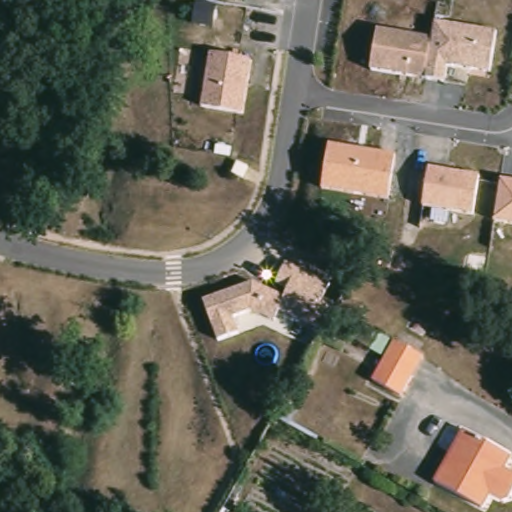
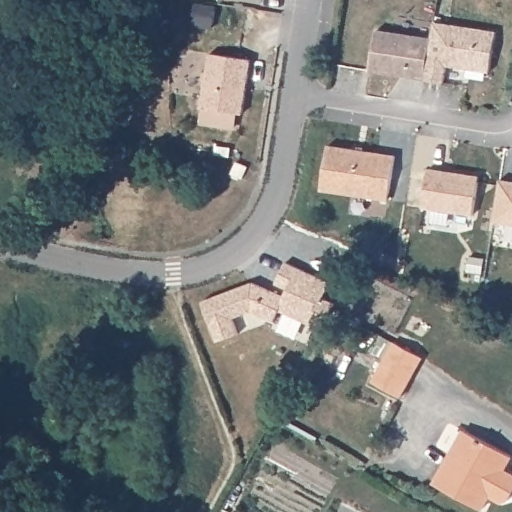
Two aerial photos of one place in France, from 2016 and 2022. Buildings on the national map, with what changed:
unchanged [(432,22),(495,31),(489,72),(446,66),(442,82),(370,71),(376,29),(430,37),(432,22)]
unchanged [(242,114),(202,108),(210,53),(251,60),(242,114)]
unchanged [(388,201),(321,191),(328,145),(396,155),(388,201)]
unchanged [(473,215),(421,209),(427,167),(478,174),(473,215)]
unchanged [(512,225),(493,222),(500,179),(512,180),(512,225)]
unchanged [(253,282),(284,296),(287,292),(273,285),(286,261),(331,282),(324,298),(335,305),(321,331),(280,311),(276,321),(253,310),(234,318),(240,336),(217,343),(201,300),(253,282)]
unchanged [(427,355),(402,398),(374,382),(398,340),(427,355)]
unchanged [(502,476),(499,474),(486,497),(491,499),(484,512),(483,512),(436,488),(463,435),(510,458),(502,476)]

